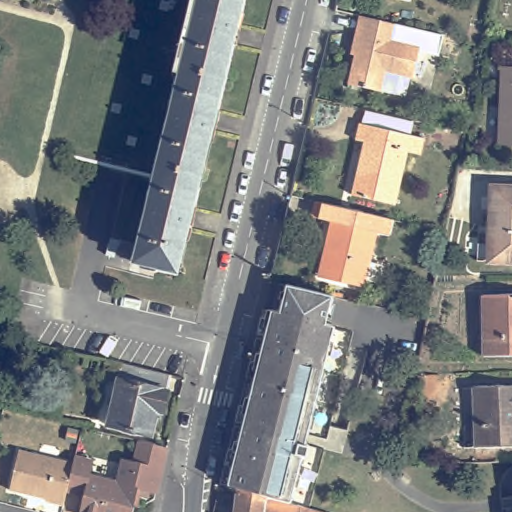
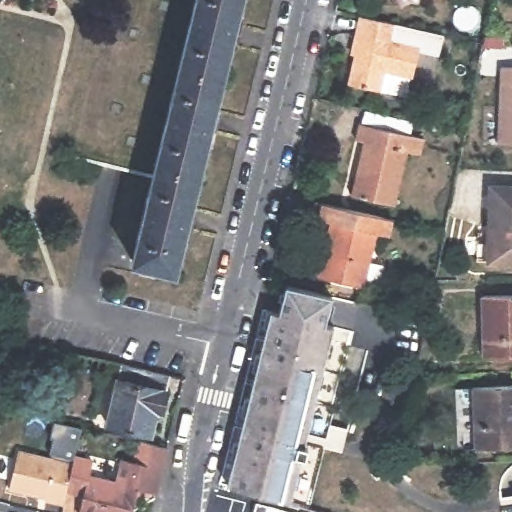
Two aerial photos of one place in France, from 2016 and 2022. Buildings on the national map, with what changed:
unchanged [(181,272),(137,262),(199,0),(247,0),(181,272)]
unchanged [(423,30),(420,45),(412,77),(385,71),(381,90),(348,83),(360,33),(356,32),(360,15),(396,24),(423,30)]
unchanged [(512,66),(512,144),(503,144),(505,66),(512,66)]
unchanged [(425,154),(412,150),(399,204),(355,194),(368,140),(360,139),(363,122),(367,123),(370,110),(416,121),(413,134),(428,137),(425,154)]
unchanged [(512,187),(512,261),(493,261),(495,186),(512,187)]
unchanged [(327,251),(333,221),(316,217),(319,201),(340,206),(385,216),(368,286),(326,277),(321,276),(327,251)]
unchanged [(240,459),(235,457),(239,441),(244,442),(251,415),(246,414),(250,397),(255,399),(262,371),(257,370),(260,353),(266,355),(272,327),(267,326),(271,310),(283,312),(290,285),(337,295),(330,324),(338,326),(311,434),(308,445),(308,446),(312,447),(310,458),(306,457),(295,503),(241,488),(234,486),(240,459)]
unchanged [(512,294),(512,355),(482,356),(482,295),(512,294)]
unchanged [(166,395),(162,416),(157,415),(151,440),(107,429),(118,381),(104,378),(107,364),(121,367),(170,379),(167,395),(166,395)]
unchanged [(472,386),(512,385),(512,446),(475,447),(472,386)]
unchanged [(92,466),(89,481),(115,486),(121,462),(135,465),(140,445),(167,452),(155,498),(137,493),(133,510),(125,508),(124,512),(80,512),(83,500),(66,495),(73,468),(75,461),(92,466)]
unchanged [(45,505),(45,502),(9,493),(18,455),(73,468),(66,495),(62,510),(45,505)]
unchanged [(295,503),(302,505),(301,512),(238,512),(241,488),(295,503)]
unchanged [(314,509),(325,512),(301,512),(302,505),(314,509)]

